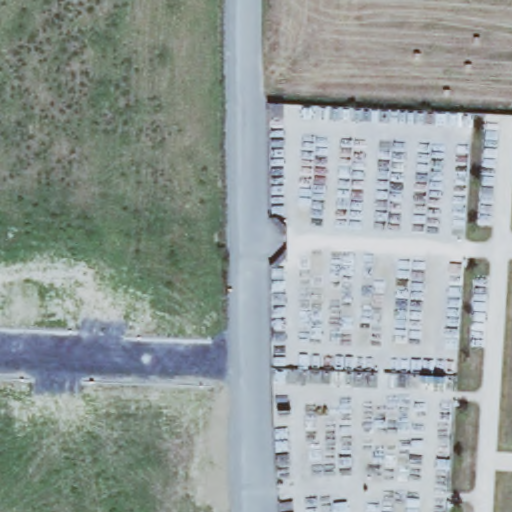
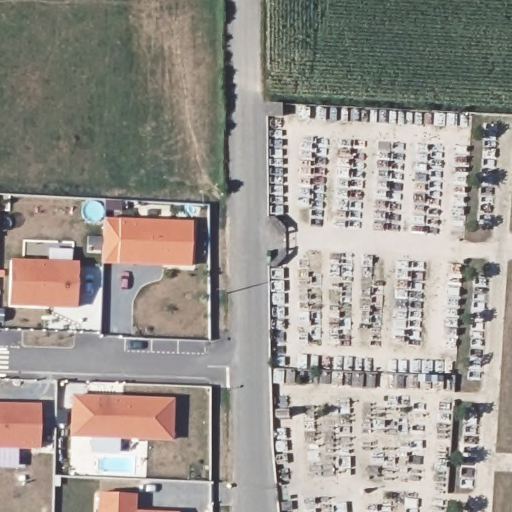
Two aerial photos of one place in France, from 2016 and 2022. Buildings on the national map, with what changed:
new [(283,113),(267,113),(267,102),(284,103),(283,113)]
new [(122,216),(195,219),(194,262),(166,260),(166,257),(157,256),(154,260),(120,258),(122,216)]
new [(13,258),(81,260),(80,304),(11,302),(13,258)]
new [(173,440),(89,437),(73,437),(75,397),(90,398),(175,401),(173,440)]
new [(10,405),(42,406),(41,449),(0,448),(0,405),(10,405)]
new [(136,495),(135,512),(100,512),(101,494),(136,495)]

